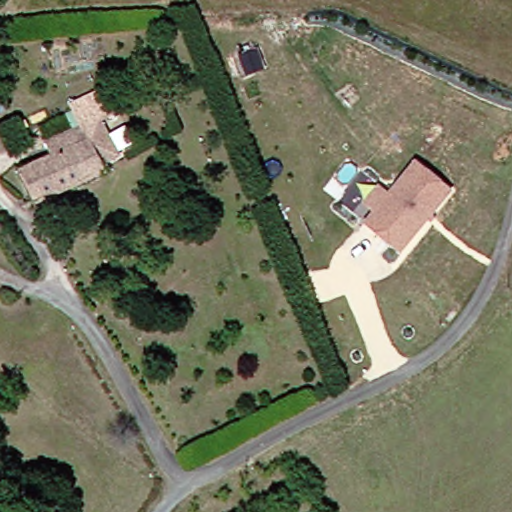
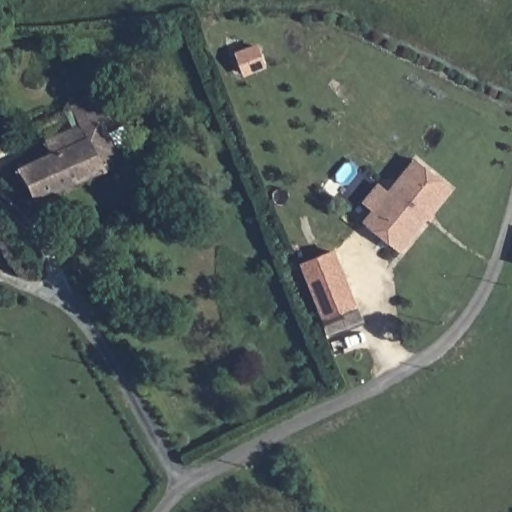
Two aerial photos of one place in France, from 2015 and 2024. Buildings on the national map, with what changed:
unchanged [(113,92),(125,117),(114,123),(128,154),(112,160),(113,167),(42,196),(27,164),(57,151),(52,139),(88,123),(82,106),(113,92)]
unchanged [(377,213),(365,204),(380,187),(392,195),(420,165),(453,194),(398,254),(388,246),(366,223),(377,213)]
new [(357,305),(322,320),(300,264),(335,251),(357,305)]

